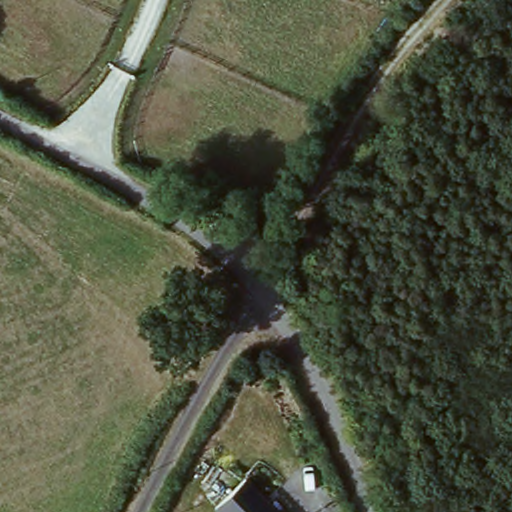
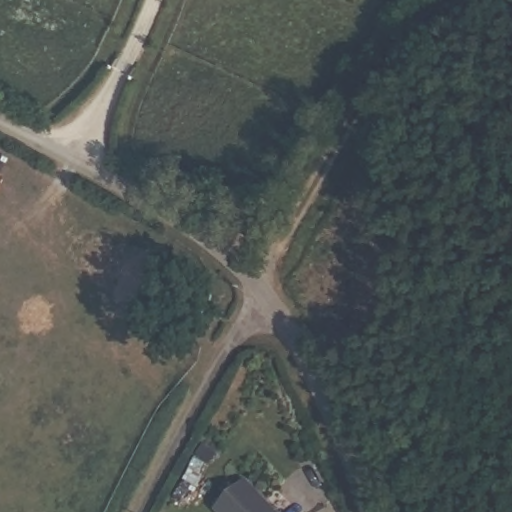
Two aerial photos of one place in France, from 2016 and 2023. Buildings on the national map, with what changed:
unchanged [(213,511),(247,477),(277,512),(214,512),(213,511)]

